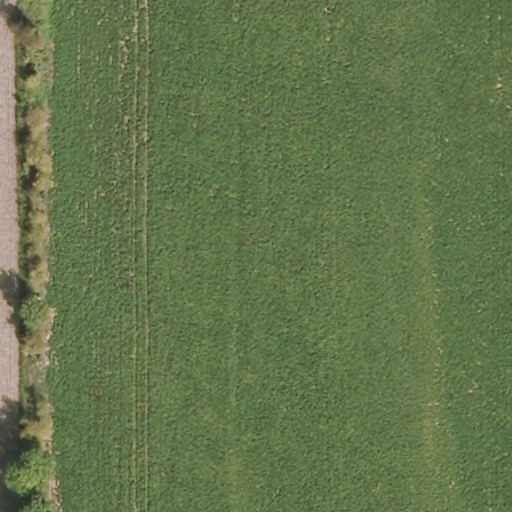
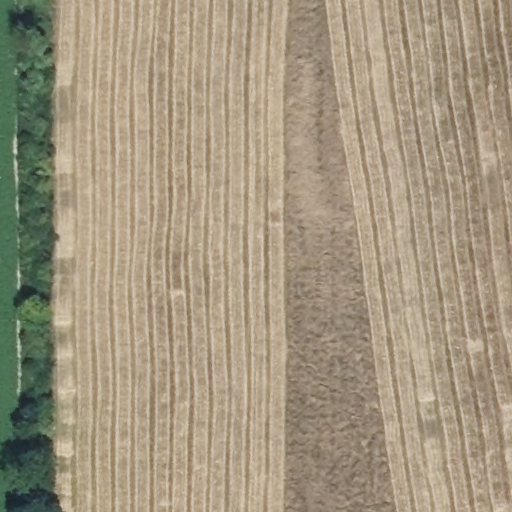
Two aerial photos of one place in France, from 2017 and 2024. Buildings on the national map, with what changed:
[]

